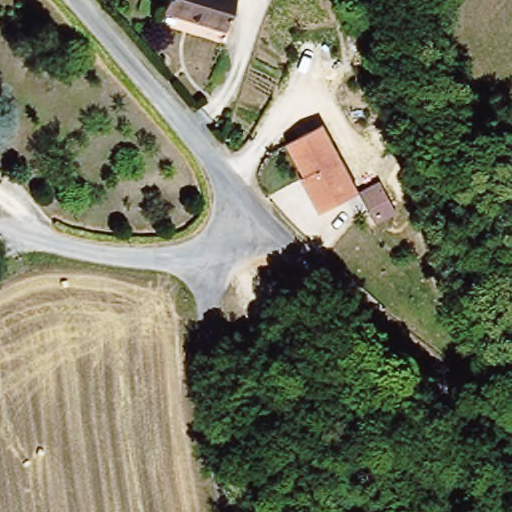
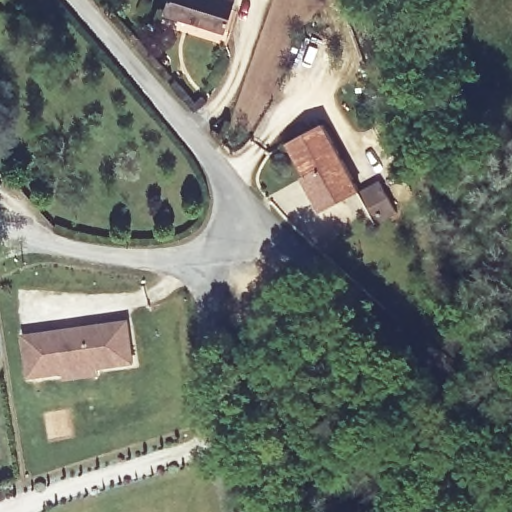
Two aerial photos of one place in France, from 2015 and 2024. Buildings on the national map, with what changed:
unchanged [(168,0),(235,0),(226,27),(166,5),(168,0)]
unchanged [(290,145),(325,126),(358,195),(320,216),(302,179),(305,178),(290,145)]
new [(127,323),(135,364),(100,370),(100,374),(65,380),(64,374),(30,380),(24,338),(127,323)]

